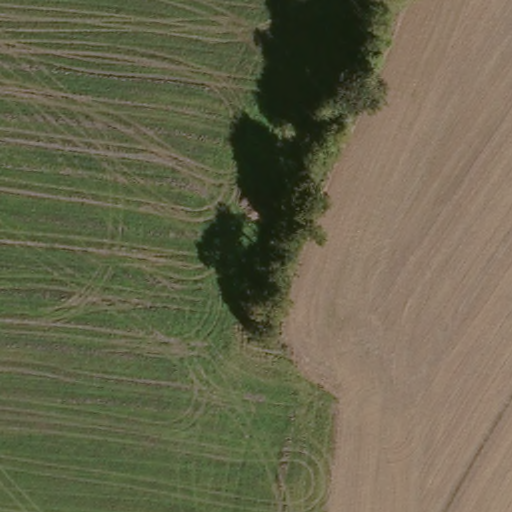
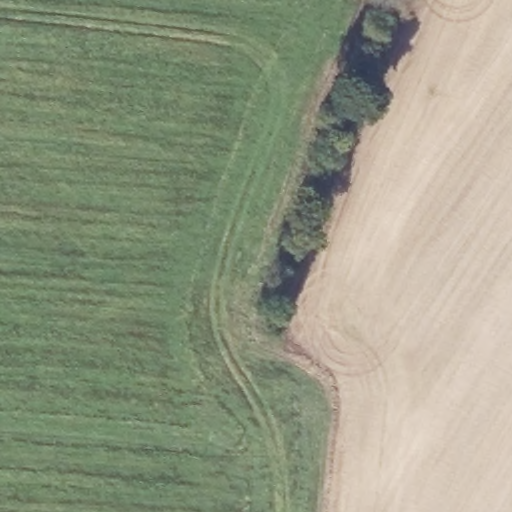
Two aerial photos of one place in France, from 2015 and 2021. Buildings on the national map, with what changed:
[]

